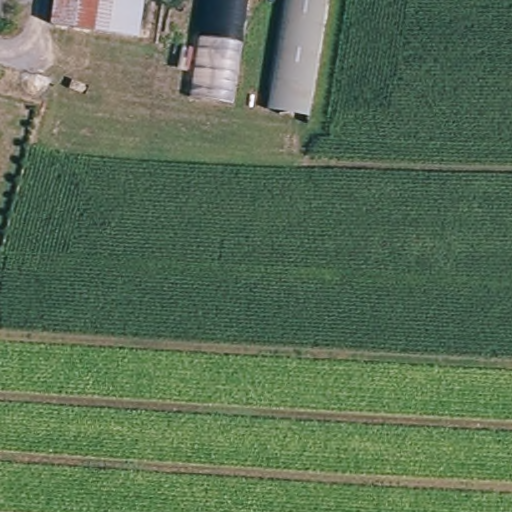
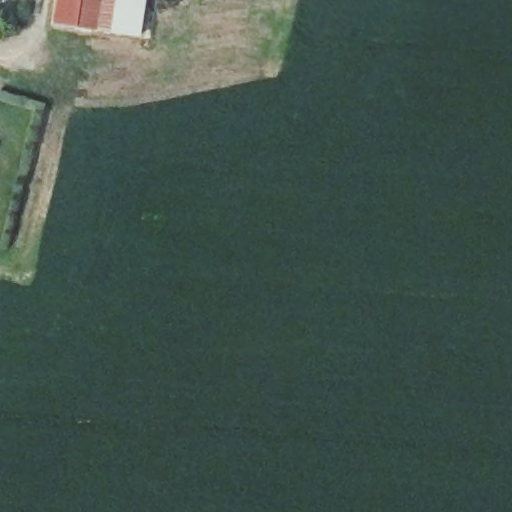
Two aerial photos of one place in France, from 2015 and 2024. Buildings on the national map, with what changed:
unchanged [(55,24),(58,0),(144,0),(139,36),(55,24)]
demolished [(250,0),(233,109),(192,103),(207,0),(250,0)]
demolished [(273,108),(287,0),(331,0),(315,114),(273,108)]

